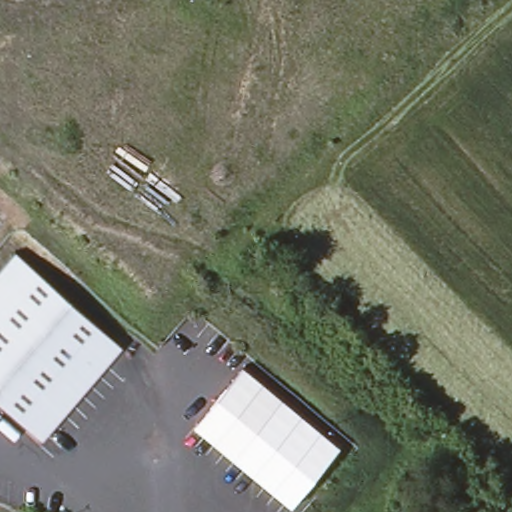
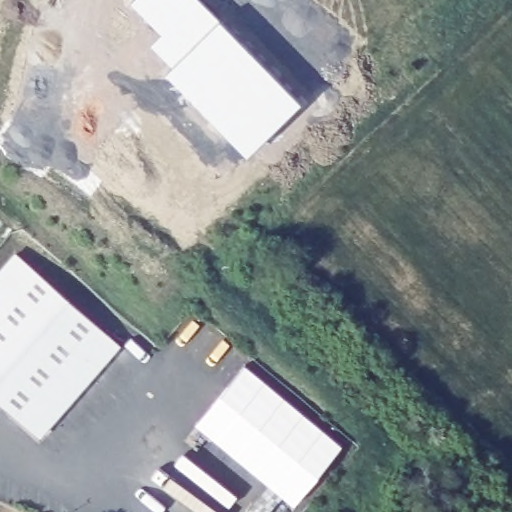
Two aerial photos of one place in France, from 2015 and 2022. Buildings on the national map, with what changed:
new [(134,0),(196,0),(300,109),(246,158),(165,76),(173,67),(151,45),(161,33),(131,3),(134,0)]
unchanged [(116,344),(36,435),(0,403),(0,269),(13,254),(116,344)]
unchanged [(245,366),(342,446),(295,506),(195,425),(245,366)]

